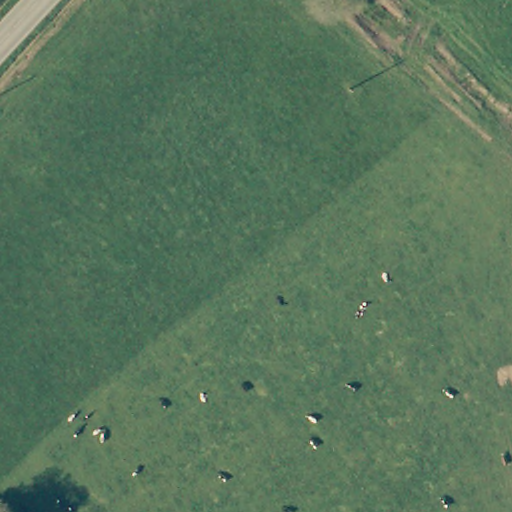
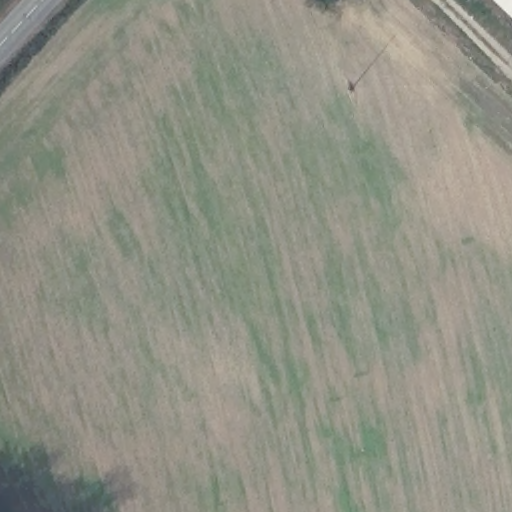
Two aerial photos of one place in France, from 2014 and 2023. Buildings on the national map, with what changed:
new [(497,0),(512,0),(512,15),(497,0)]

